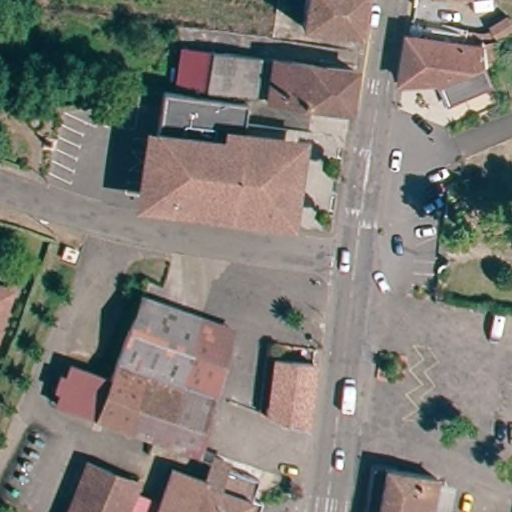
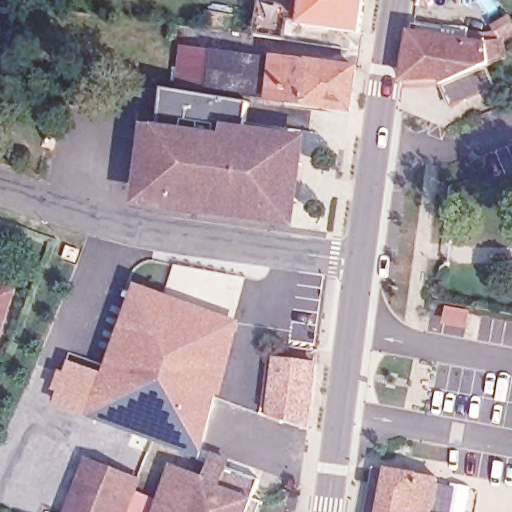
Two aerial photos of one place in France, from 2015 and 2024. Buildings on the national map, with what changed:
unchanged [(300,25),(305,0),(370,0),(364,34),(300,25)]
unchanged [(489,70),(444,88),(441,81),(402,85),(411,29),(482,37),(483,34),(503,25),(512,38),(512,41),(496,49),(495,68),(490,70),(489,70)]
unchanged [(182,49),(215,53),(209,95),(175,90),(182,49)]
unchanged [(209,95),(215,53),(358,73),(352,113),(209,95)]
unchanged [(498,92),(497,93),(481,99),(480,94),(466,99),(468,104),(452,110),(444,88),(489,70),(490,70),(498,92)]
unchanged [(156,155),(164,102),(250,112),(247,139),(246,147),(296,153),(293,171),(156,155)]
unchanged [(300,213),(288,211),(287,218),(150,203),(156,155),(293,171),(293,175),(304,176),(300,213)]
unchanged [(20,294),(0,352),(0,287),(20,294)]
unchanged [(185,389),(150,378),(120,368),(144,299),(206,318),(185,389)]
unchanged [(206,319),(239,329),(217,399),(191,390),(185,389),(206,319)]
unchanged [(270,416),(278,359),(316,364),(308,429),(270,416)]
unchanged [(150,378),(132,432),(60,409),(65,395),(57,392),(62,378),(71,381),(75,370),(115,383),(120,368),(150,378)]
unchanged [(186,459),(177,456),(153,447),(155,440),(132,432),(150,378),(185,389),(191,390),(217,399),(202,455),(200,463),(186,459)]
unchanged [(135,495),(129,512),(70,512),(89,463),(114,473),(140,483),(135,495)]
unchanged [(206,482),(212,463),(260,482),(254,499),(264,503),(261,512),(159,512),(172,470),(206,482)]
unchanged [(397,475),(391,512),(376,512),(383,473),(397,475)]
unchanged [(442,512),(391,512),(397,475),(447,484),(442,512)]
unchanged [(155,502),(151,512),(129,512),(135,495),(155,502)]

